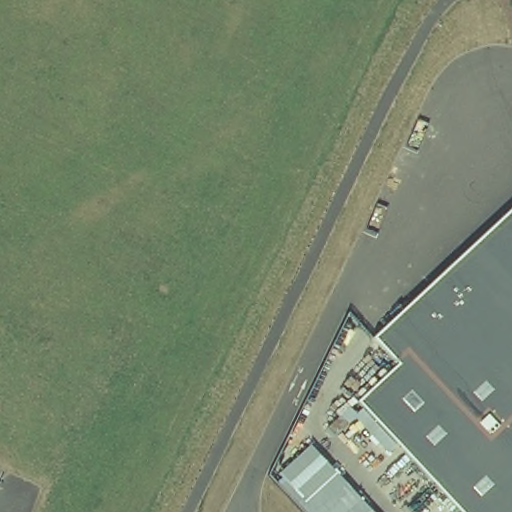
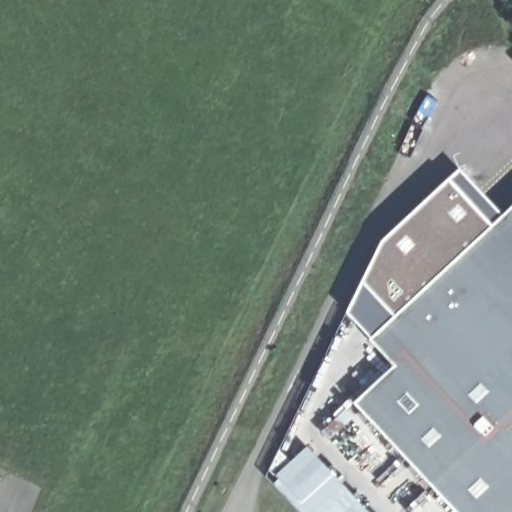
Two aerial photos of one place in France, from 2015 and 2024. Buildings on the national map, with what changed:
new [(372,340),(346,314),(381,241),(461,171),(503,215),(372,340)]
unchanged [(372,340),(512,208),(512,512),(458,512),(356,403),(396,366),(372,340)]
unchanged [(369,512),(302,512),(275,483),(280,478),(277,475),(308,446),(369,512)]

